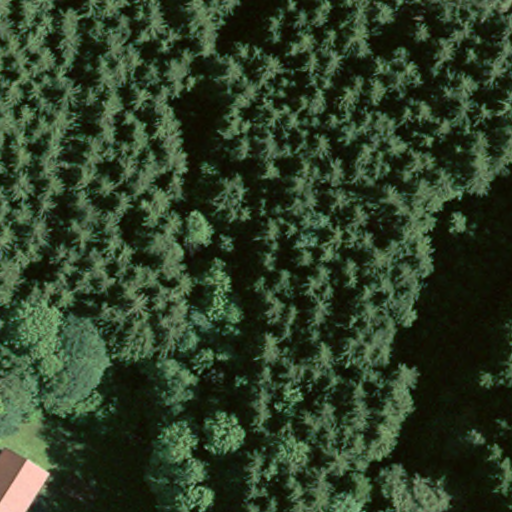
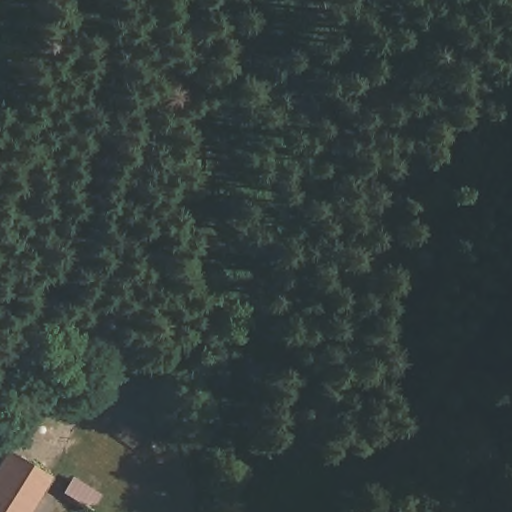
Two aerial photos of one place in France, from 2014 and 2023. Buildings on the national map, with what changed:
unchanged [(49,481),(28,512),(0,512),(0,460),(5,453),(49,481)]

